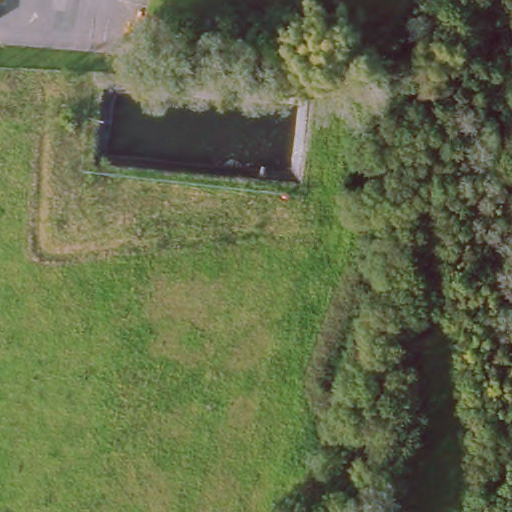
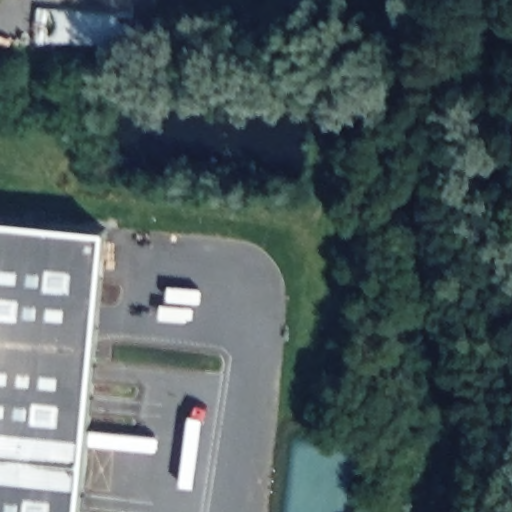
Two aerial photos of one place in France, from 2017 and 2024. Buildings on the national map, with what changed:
new [(103,234),(81,512),(0,512),(0,223),(103,234)]

